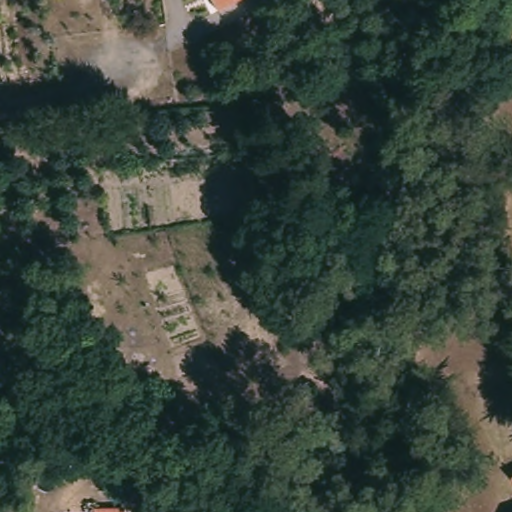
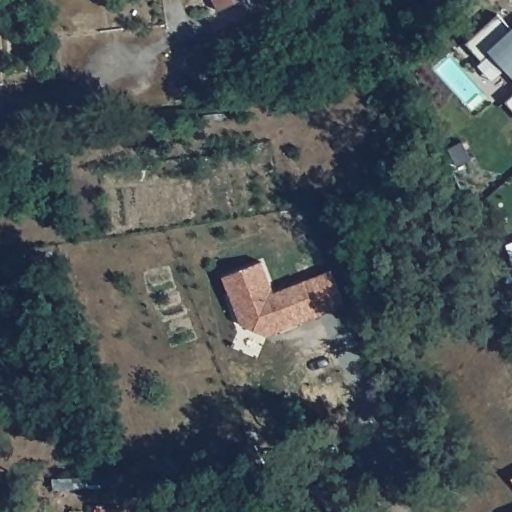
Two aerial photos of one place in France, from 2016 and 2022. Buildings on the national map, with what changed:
unchanged [(256,0),(256,1),(223,14),(216,0),(256,0)]
new [(497,18),(512,34),(512,81),(490,56),(481,64),(465,46),(497,18)]
new [(504,105),(512,98),(512,114),(504,105)]
new [(462,140),(471,159),(456,167),(446,148),(462,140)]
new [(260,264),(275,294),(304,280),(321,314),(272,337),(246,328),(224,282),(260,264)]
unchanged [(511,482),(512,481),(512,483),(511,482)]
unchanged [(100,511),(114,512),(100,512),(100,511)]

